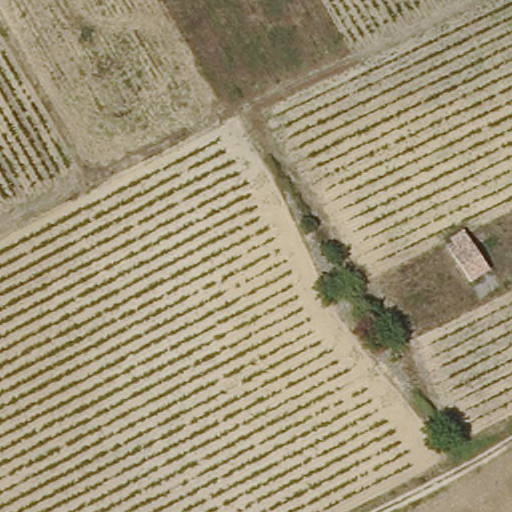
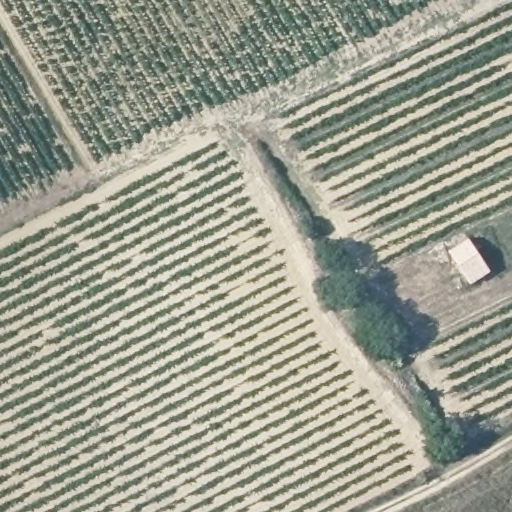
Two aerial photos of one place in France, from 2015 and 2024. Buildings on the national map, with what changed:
unchanged [(473,245),(488,275),(469,284),(454,255),(473,245)]

